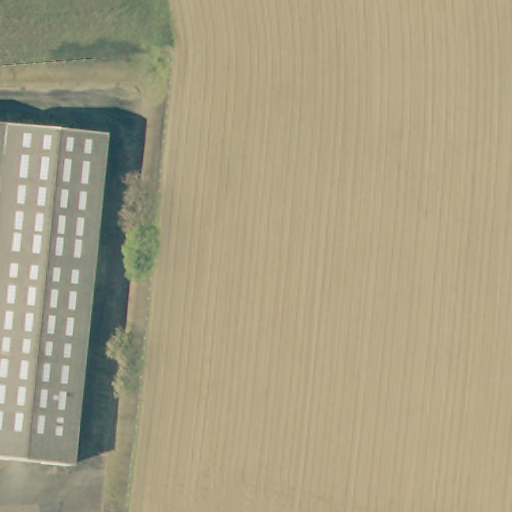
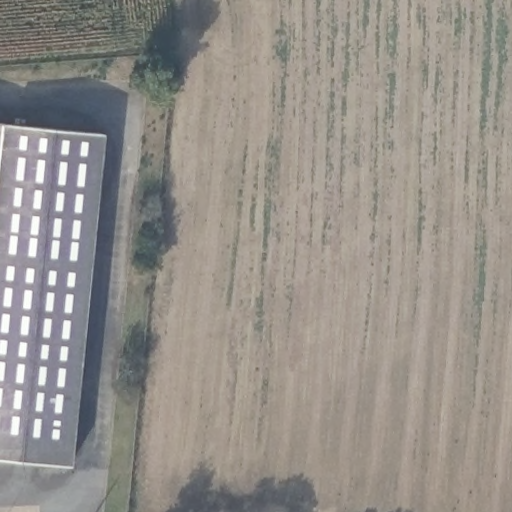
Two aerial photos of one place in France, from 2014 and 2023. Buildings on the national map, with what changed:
unchanged [(66,487),(0,480),(0,115),(114,129),(66,487)]

